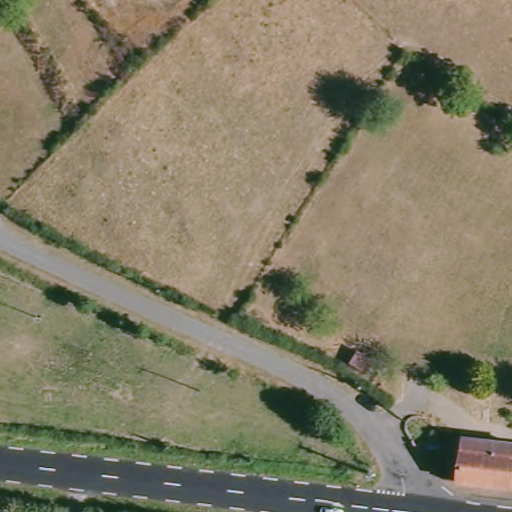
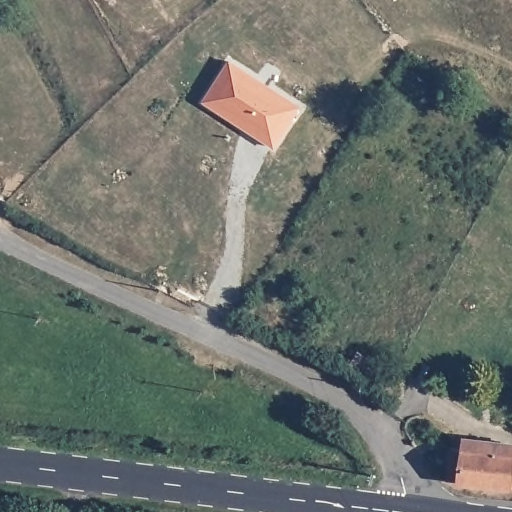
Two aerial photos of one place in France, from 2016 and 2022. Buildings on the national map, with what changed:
new [(232,63),(301,110),(275,149),(248,131),(253,125),(235,113),(231,120),(205,102),(232,63)]
unchanged [(454,452),(461,451),(463,437),(463,436),(463,432),(512,443),(512,495),(449,485),(454,452)]

